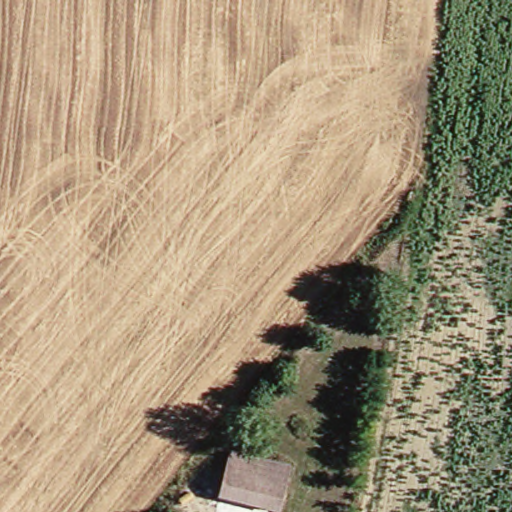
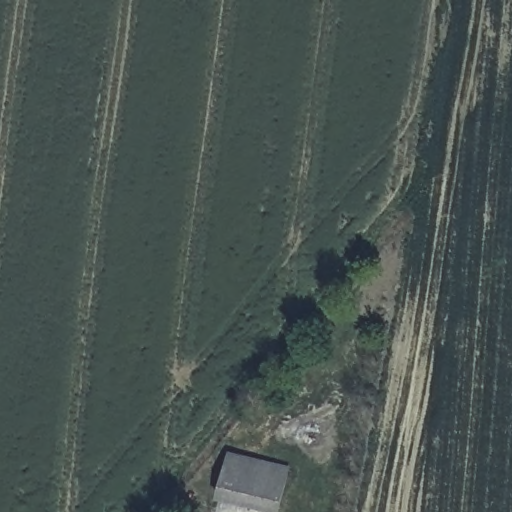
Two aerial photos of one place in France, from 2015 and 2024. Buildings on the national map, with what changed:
unchanged [(228,453),(292,465),(280,512),(277,512),(219,501),(228,453)]

